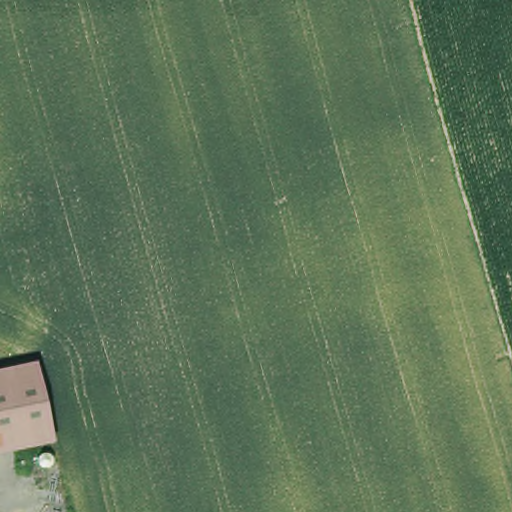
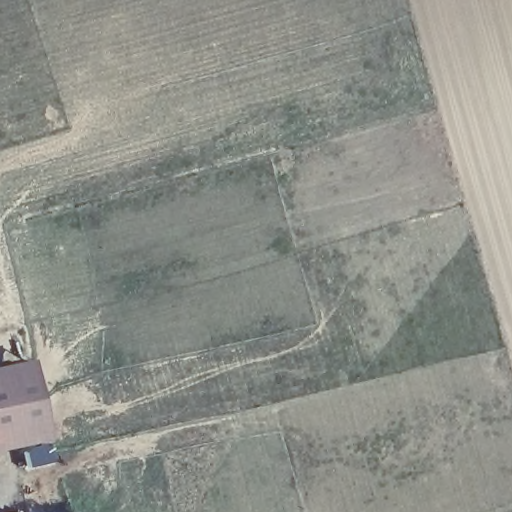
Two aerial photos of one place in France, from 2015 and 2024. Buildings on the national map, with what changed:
unchanged [(33,364),(40,392),(0,404),(0,372),(33,364)]
unchanged [(40,392),(51,441),(3,453),(0,445),(0,404),(40,392)]
unchanged [(3,453),(0,454),(0,445),(3,453)]

